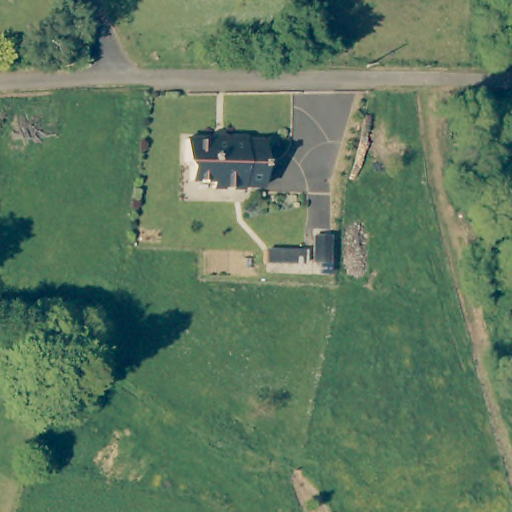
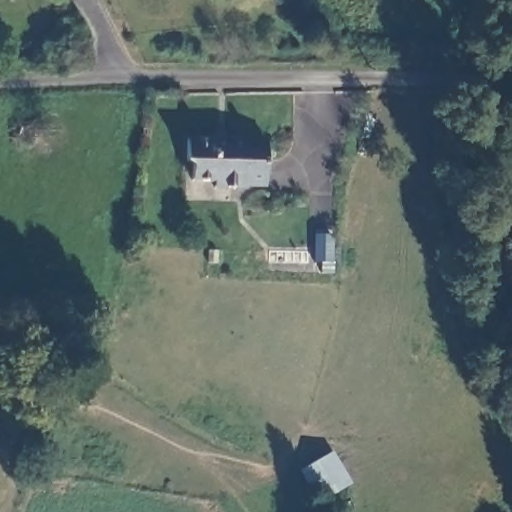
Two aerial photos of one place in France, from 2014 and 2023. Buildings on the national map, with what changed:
unchanged [(226,134),(226,131),(243,131),(242,134),(264,134),(263,178),(242,179),(242,181),(212,181),(213,172),(190,172),(190,158),(186,154),(186,132),(226,134)]
unchanged [(335,239),(334,265),(317,264),(318,239),(335,239)]
unchanged [(311,252),(310,264),(272,263),(272,251),(311,252)]
new [(298,470),(332,450),(352,483),(318,503),(298,470)]

